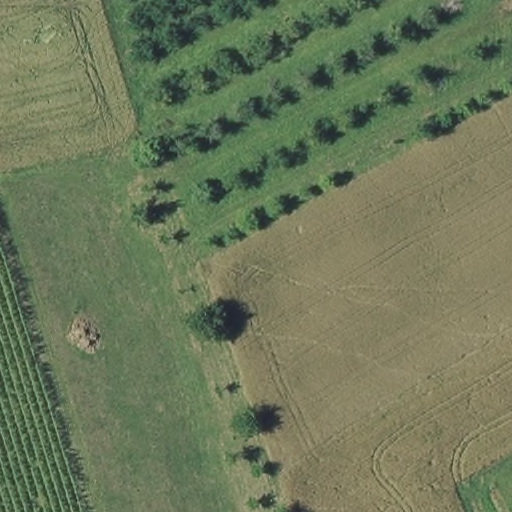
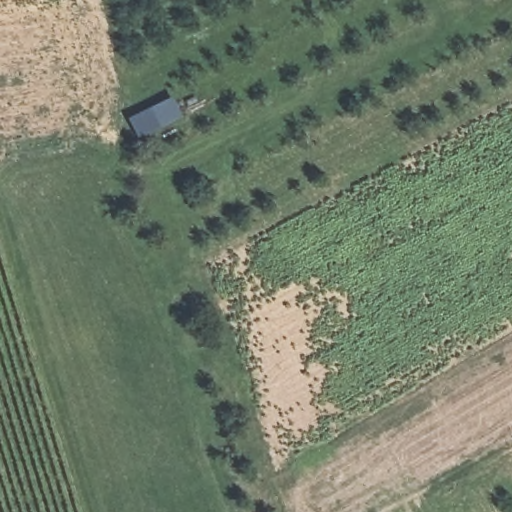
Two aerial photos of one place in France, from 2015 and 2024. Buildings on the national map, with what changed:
new [(143,138),(133,118),(169,100),(179,120),(143,138)]

